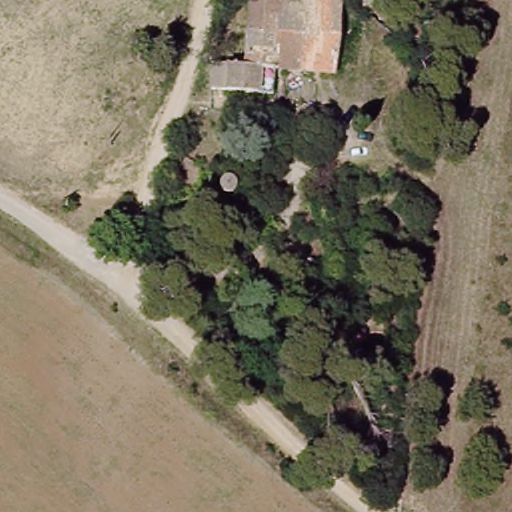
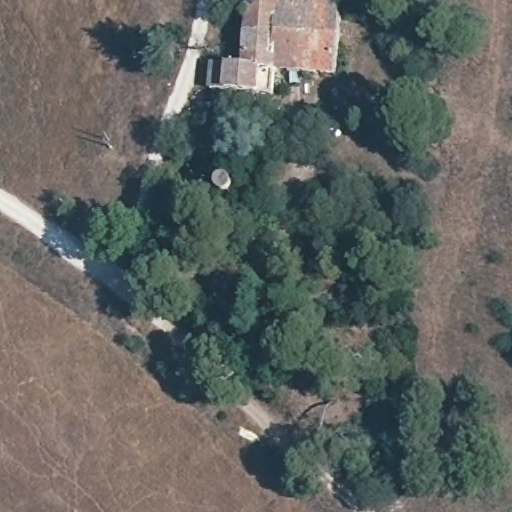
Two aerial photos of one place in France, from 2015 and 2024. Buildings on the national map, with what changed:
unchanged [(339,75),(278,71),(276,93),(213,90),(215,66),(246,68),(252,0),(326,0),(344,1),(339,75)]

